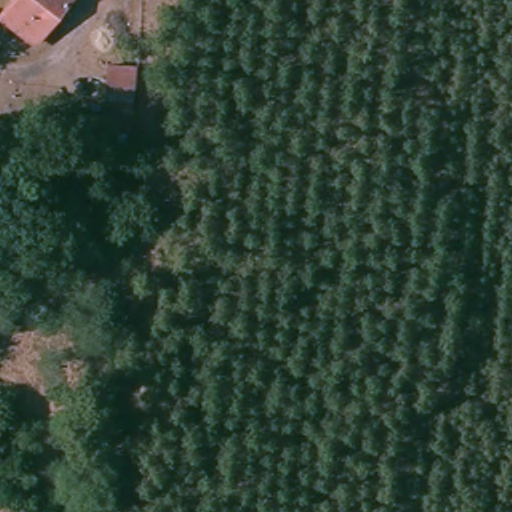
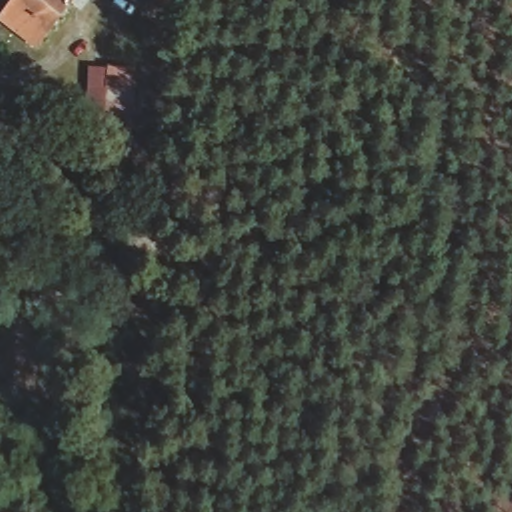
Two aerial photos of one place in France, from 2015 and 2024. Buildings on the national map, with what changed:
unchanged [(0,25),(0,11),(8,0),(71,0),(36,48),(0,25)]
unchanged [(132,134),(102,132),(106,65),(135,66),(132,134)]

